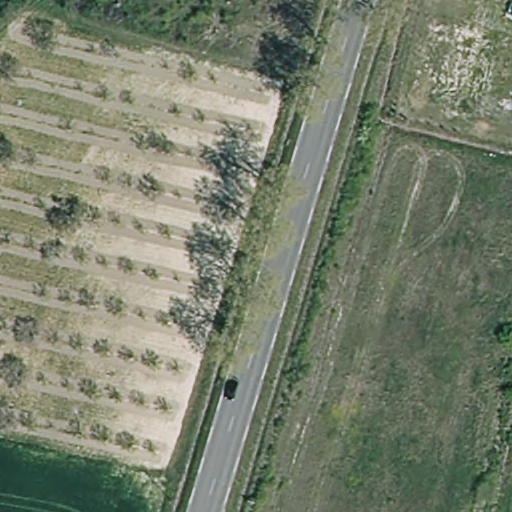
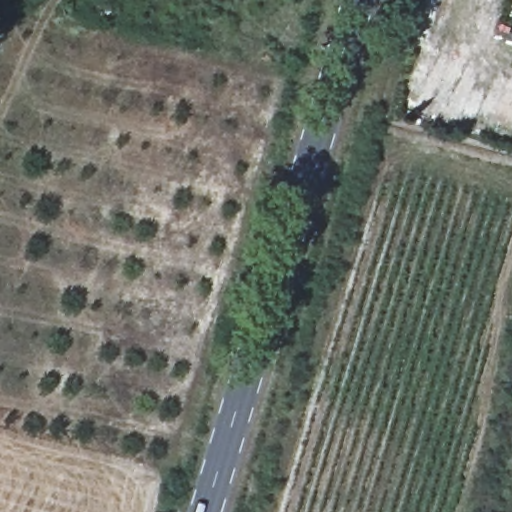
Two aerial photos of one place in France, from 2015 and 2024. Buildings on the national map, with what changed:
[]

